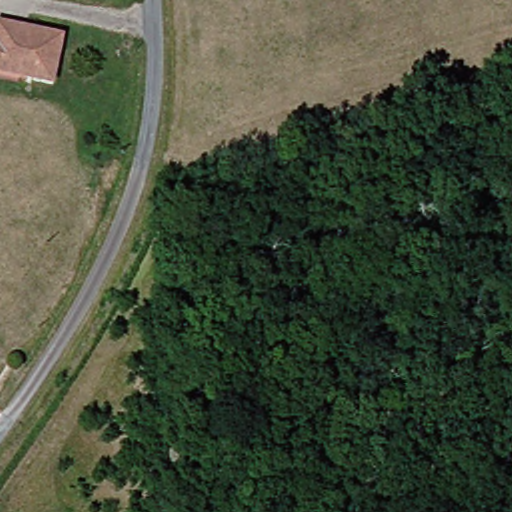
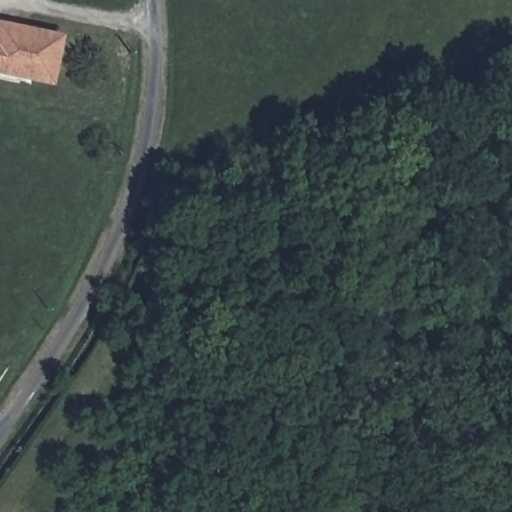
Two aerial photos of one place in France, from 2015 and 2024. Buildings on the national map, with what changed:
unchanged [(41,85),(0,76),(0,28),(53,39),(41,85)]

